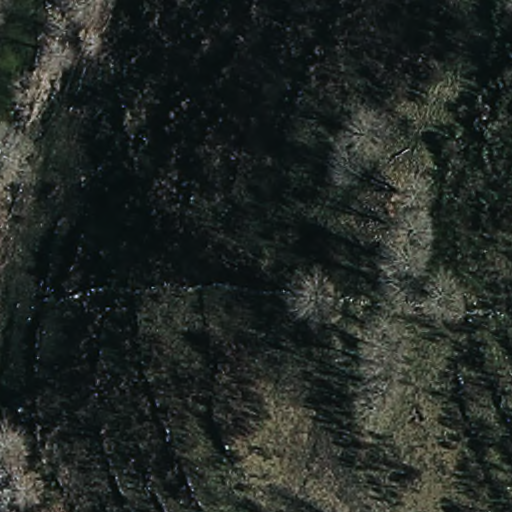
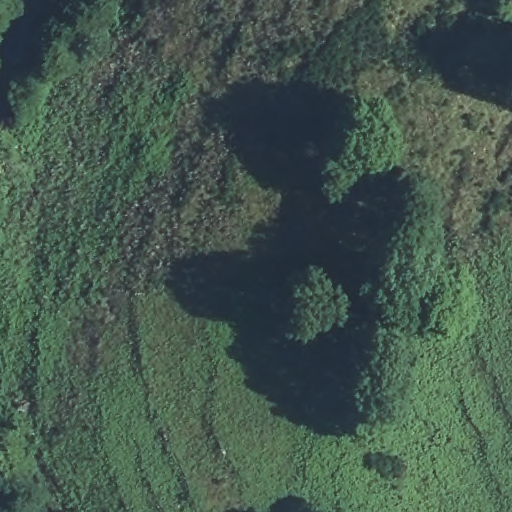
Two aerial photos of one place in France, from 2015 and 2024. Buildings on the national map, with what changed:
[]

